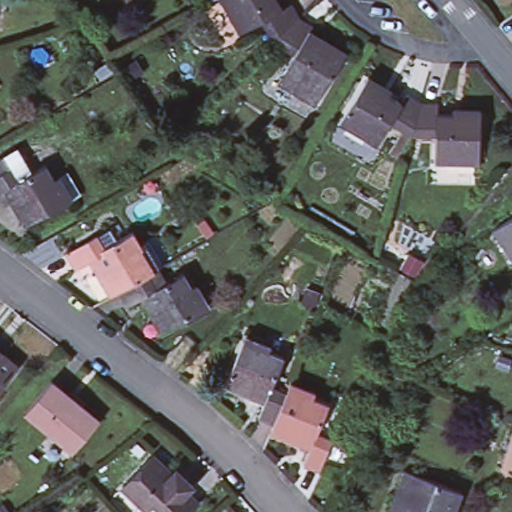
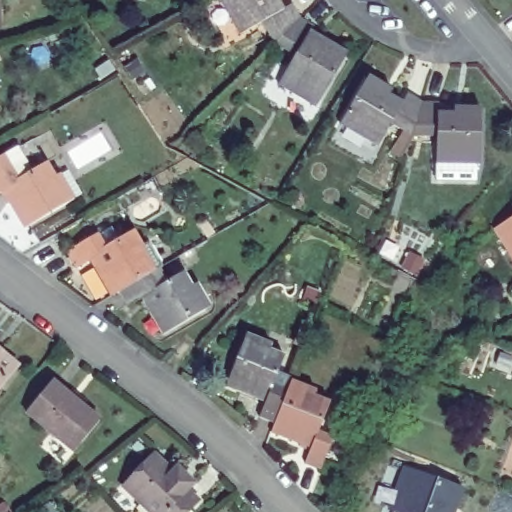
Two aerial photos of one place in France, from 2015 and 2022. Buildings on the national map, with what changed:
unchanged [(279,79),(296,50),(278,38),(264,17),(239,31),(222,0),(280,0),(284,6),(294,0),(304,14),(316,22),(309,32),(345,53),(317,100),(279,79)]
unchanged [(429,166),(429,140),(406,140),(383,129),(371,147),(334,125),(359,84),(396,105),(401,97),(416,105),(432,106),(432,118),(474,120),(472,168),(429,166)]
unchanged [(33,220),(11,184),(0,190),(0,172),(19,162),(26,174),(54,159),(76,195),(33,220)]
unchanged [(496,223),(512,213),(512,251),(496,223)]
unchanged [(161,330),(141,293),(126,301),(118,286),(111,290),(90,253),(75,260),(67,246),(110,223),(118,236),(133,227),(143,245),(151,240),(163,260),(155,265),(149,268),(157,282),(183,268),(205,305),(161,330)]
unchanged [(307,457),(313,442),(273,425),(276,415),(262,410),(268,396),(228,380),(246,334),(286,351),(276,378),(289,383),(291,379),(333,396),(321,426),(334,432),(322,464),(307,457)]
unchanged [(0,380),(0,351),(14,363),(0,380)]
unchanged [(25,408),(51,378),(99,420),(74,449),(25,408)]
unchanged [(181,512),(145,512),(116,483),(148,452),(166,470),(171,465),(187,481),(183,486),(181,488),(193,500),(181,512)]
unchanged [(389,510),(404,468),(456,488),(447,512),(396,512),(389,510)]

